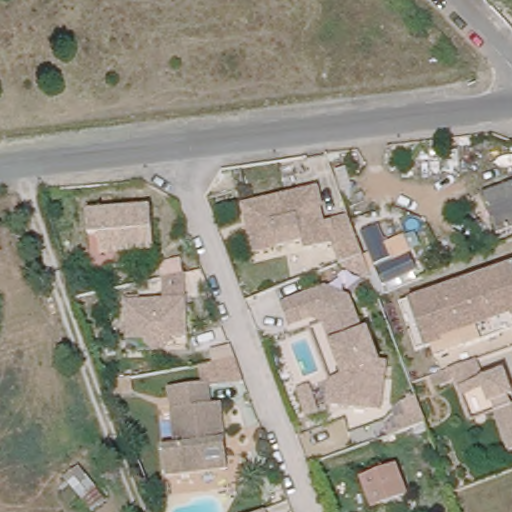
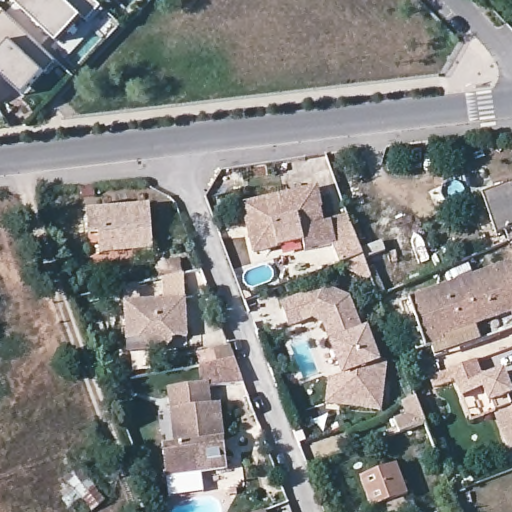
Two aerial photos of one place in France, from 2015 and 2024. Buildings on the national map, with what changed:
new [(103,6),(90,22),(85,18),(63,44),(17,1),(18,0),(97,0),(103,6)]
new [(25,95),(0,71),(0,16),(5,10),(58,60),(25,95)]
unchanged [(512,181),(512,227),(493,235),(476,196),(512,181)]
unchanged [(363,266),(341,262),(340,258),(336,259),(330,242),(303,246),(301,239),(253,249),(250,230),(248,221),(245,201),(316,187),(321,206),(318,207),(321,220),(347,215),(361,251),(366,265),(363,266)]
unchanged [(150,245),(144,246),(98,250),(98,230),(87,231),(86,222),(85,211),(146,205),(150,245)]
unchanged [(405,299),(414,296),(512,259),(512,308),(448,331),(450,335),(437,340),(431,342),(422,345),(405,299)]
unchanged [(336,375),(351,370),(331,317),(319,311),(296,320),(288,297),(331,281),(356,291),(370,326),(374,325),(377,332),(386,355),(394,356),(388,405),(347,400),(334,398),(336,375)]
unchanged [(188,332),(173,332),(166,348),(155,348),(146,333),(128,334),(127,295),(188,293),(188,332)]
unchanged [(512,308),(512,324),(454,346),(450,335),(448,331),(512,308)]
unchanged [(218,461),(223,492),(201,495),(199,475),(160,480),(156,450),(168,448),(163,411),(160,390),(193,385),(191,365),(228,360),(237,385),(202,390),(204,406),(211,406),(216,443),(217,452),(218,461)]
unchanged [(504,425),(501,414),(499,415),(491,391),(468,399),(465,390),(443,396),(441,390),(487,373),(494,390),(512,383),(512,445),(504,425)]
unchanged [(132,390),(112,392),(106,377),(131,375),(132,390)]
unchanged [(396,419),(409,415),(404,403),(419,398),(428,423),(401,432),(396,419)]
unchanged [(407,490),(371,503),(359,471),(396,458),(407,490)]
unchanged [(105,500),(92,510),(83,498),(96,487),(105,500)]
unchanged [(257,512),(268,508),(269,512),(257,512)]

